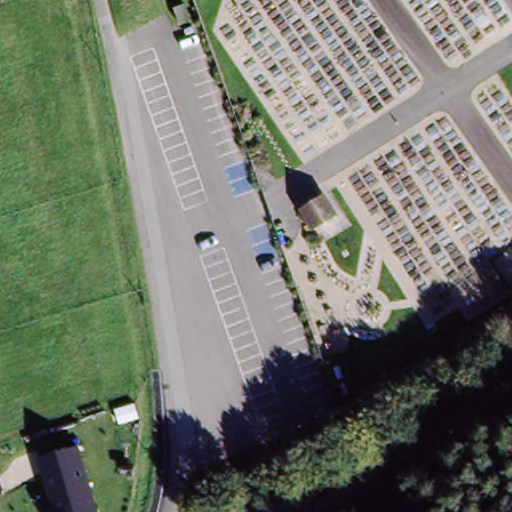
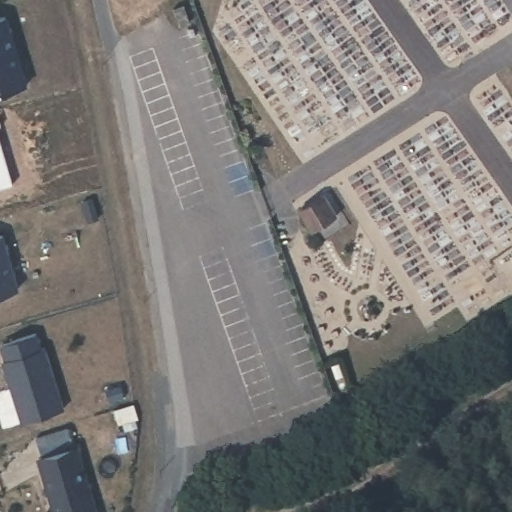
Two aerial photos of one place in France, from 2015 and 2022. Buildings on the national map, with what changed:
new [(0,29),(7,26),(26,94),(0,103),(0,29)]
unchanged [(335,220),(310,234),(297,215),(322,197),(335,220)]
new [(0,245),(16,241),(30,296),(0,306),(0,245)]
new [(35,335),(40,351),(43,350),(62,411),(20,423),(15,406),(18,405),(15,393),(12,393),(2,362),(5,361),(0,346),(35,335)]
unchanged [(75,447),(96,512),(48,512),(46,507),(53,503),(39,460),(75,447)]

